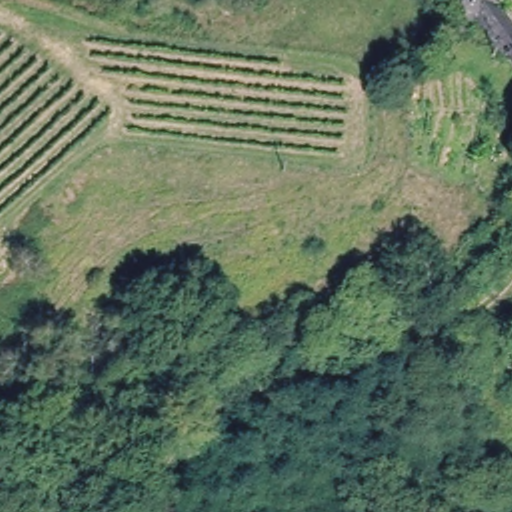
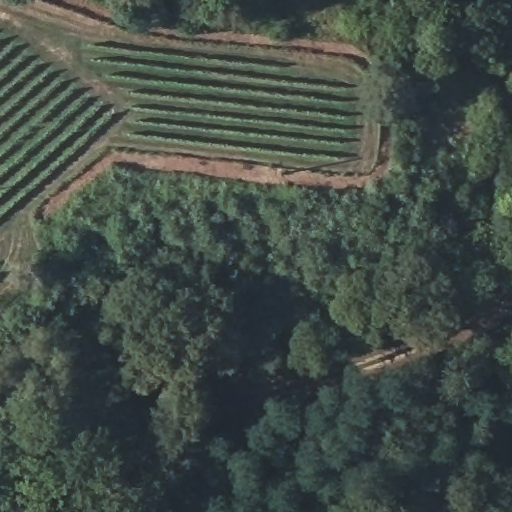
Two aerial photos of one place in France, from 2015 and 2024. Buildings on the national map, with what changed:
unchanged [(450,0),(512,0),(507,4),(512,12),(512,71),(479,22),(470,29),(467,30),(448,2),(450,0)]

